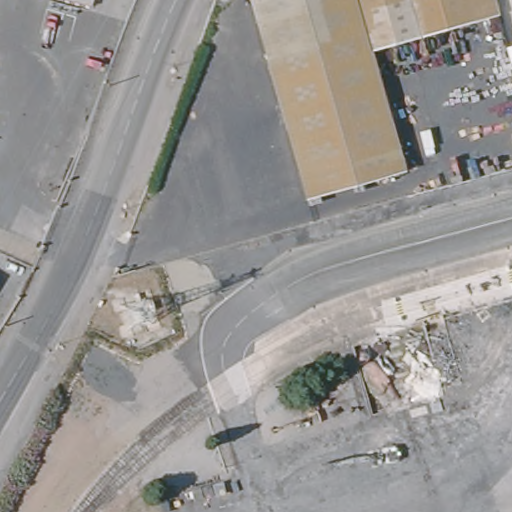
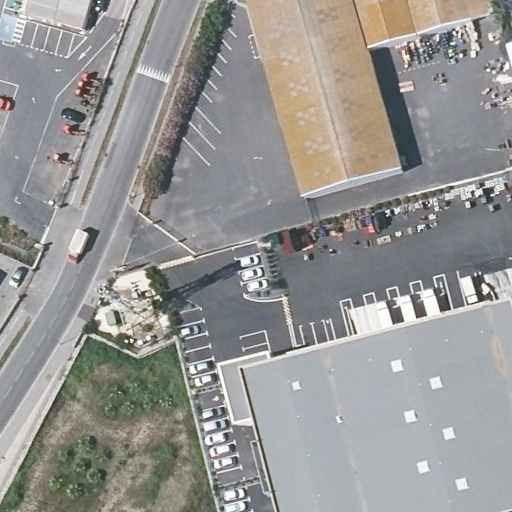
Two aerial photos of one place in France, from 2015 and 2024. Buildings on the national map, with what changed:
unchanged [(405,170),(305,198),(247,0),(464,0),(470,24),(370,52),(405,170)]
unchanged [(470,24),(464,0),(493,0),(498,16),(470,24)]
new [(274,479),(264,427),(243,431),(227,372),(279,357),(282,367),(303,360),(302,356),(430,321),(484,310),(512,306),(512,512),(284,512),(274,479)]
demolished [(355,346),(446,320),(448,326),(465,386),(445,391),(447,395),(375,416),(355,346)]

